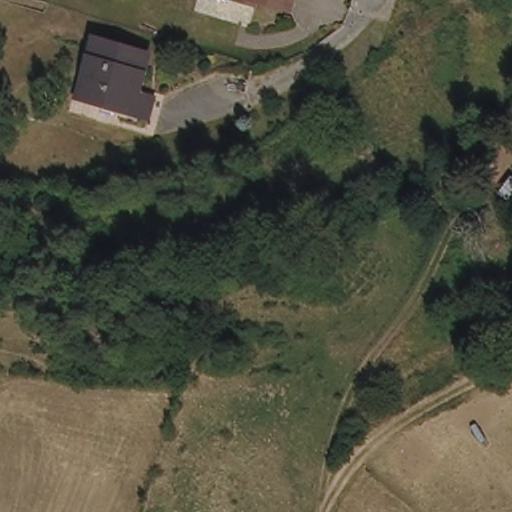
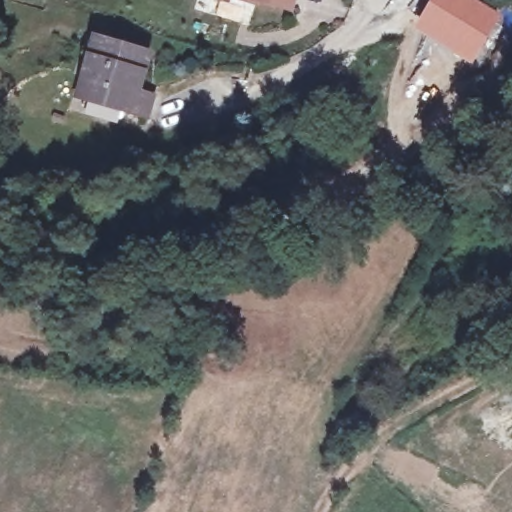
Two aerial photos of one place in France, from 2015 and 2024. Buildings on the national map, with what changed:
unchanged [(250,4),(236,0),(252,0),(250,4)]
unchanged [(292,10),(259,0),(295,0),(292,10)]
new [(430,0),(478,0),(502,14),(472,63),(413,28),(430,0)]
unchanged [(132,96),(148,101),(142,118),(74,99),(93,40),(143,55),(132,96)]

